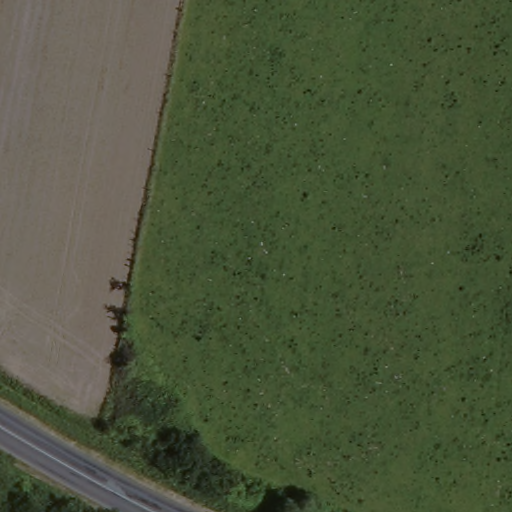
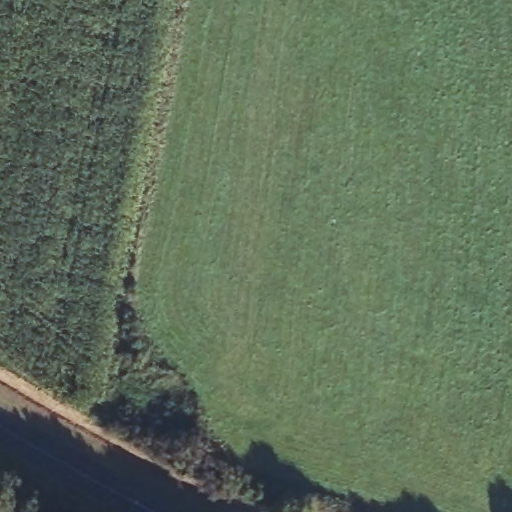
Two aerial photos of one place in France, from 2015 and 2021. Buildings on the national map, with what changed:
[]

